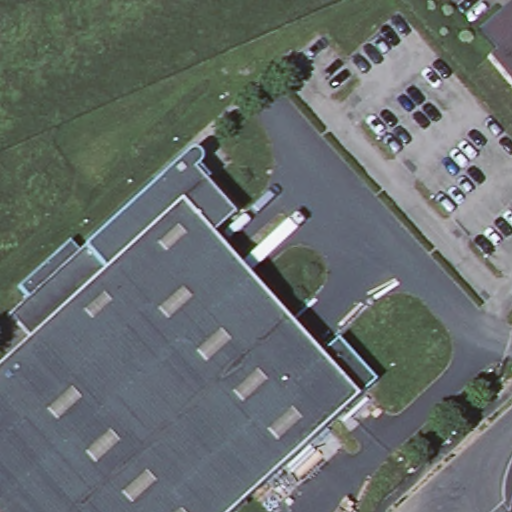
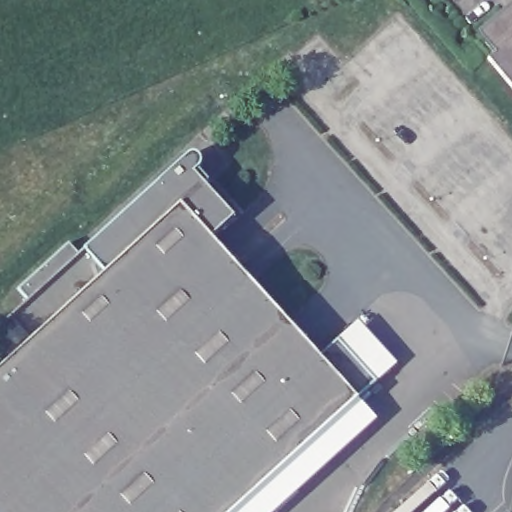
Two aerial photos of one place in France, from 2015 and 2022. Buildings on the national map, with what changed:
unchanged [(508,0),(512,0),(512,90),(483,59),(489,54),(471,32),(508,0)]
unchanged [(9,322),(29,305),(19,293),(69,248),(78,259),(159,187),(168,178),(184,164),(192,160),(196,161),(199,163),(201,169),(200,176),(210,186),(204,190),(234,222),(212,243),(319,362),(338,345),(377,387),(239,512),(0,512),(0,372),(30,345),(9,322)]

